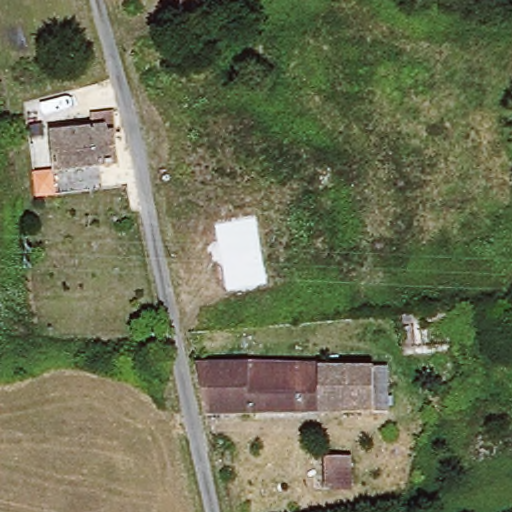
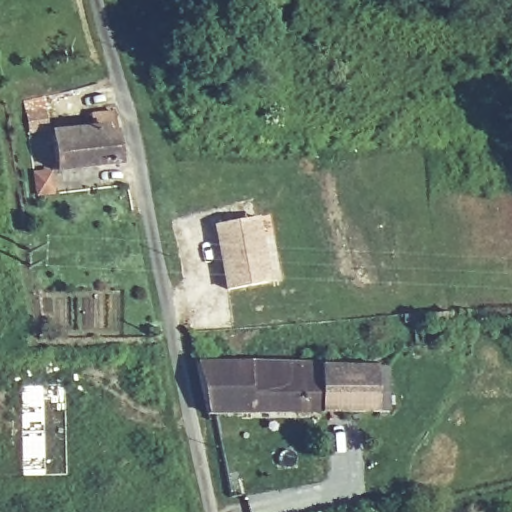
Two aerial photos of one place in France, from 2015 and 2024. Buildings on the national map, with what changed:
unchanged [(42,135),(31,136),(30,125),(41,124),(42,135)]
unchanged [(88,133),(112,168),(52,175),(47,138),(88,133)]
new [(214,225),(258,217),(270,281),(225,289),(214,225)]
unchanged [(450,320),(403,323),(403,317),(450,313),(450,320)]
unchanged [(377,412),(307,412),(197,414),(186,364),(254,363),(377,368),(377,412)]
unchanged [(350,489),(325,488),(325,459),(350,458),(350,489)]

